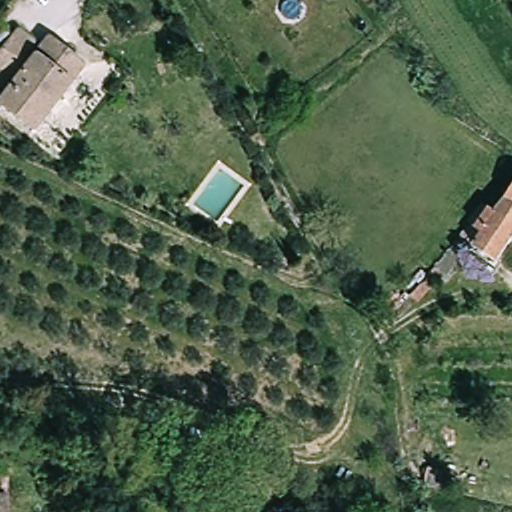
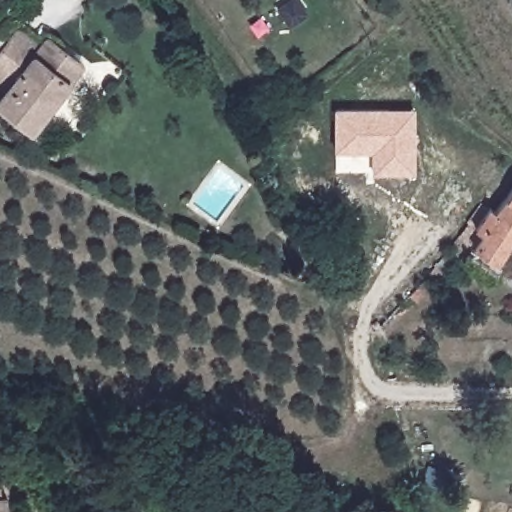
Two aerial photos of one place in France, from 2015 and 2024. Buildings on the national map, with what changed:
unchanged [(85,61),(71,79),(73,80),(33,130),(0,104),(0,99),(3,95),(0,93),(0,54),(21,28),(43,45),(51,35),(85,61)]
new [(415,172),(371,172),(370,151),(335,151),(335,108),(416,108),(415,172)]
unchanged [(447,244),(457,232),(467,220),(464,219),(478,201),(494,210),(512,183),(512,235),(495,260),(474,245),(465,256),(460,253),(444,272),(440,270),(414,300),(406,293),(431,265),(447,244)]
unchanged [(420,481),(425,463),(447,469),(444,486),(420,481)]
unchanged [(3,483),(3,494),(4,502),(11,501),(11,512),(0,512),(0,483),(3,483)]

